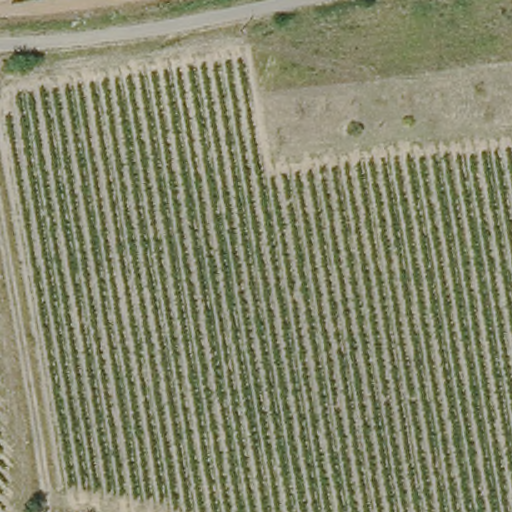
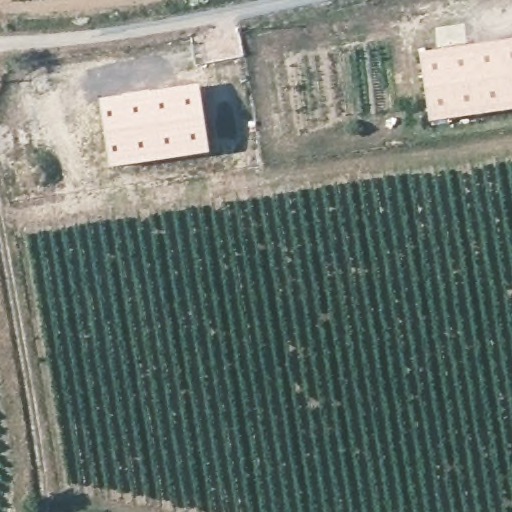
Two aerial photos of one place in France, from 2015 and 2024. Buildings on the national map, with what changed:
new [(512,98),(437,110),(426,45),(512,31),(512,98)]
new [(140,91),(200,84),(210,153),(110,169),(98,99),(140,91)]

